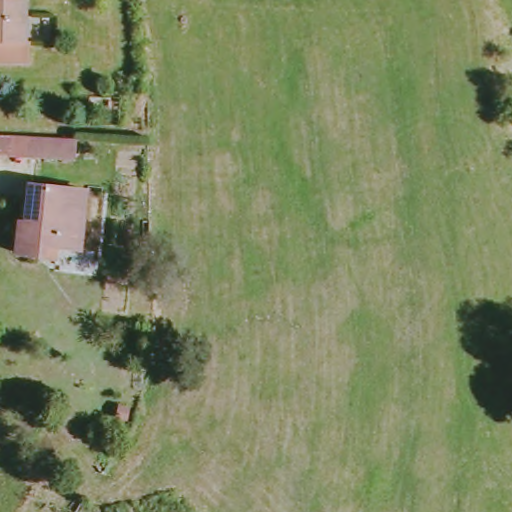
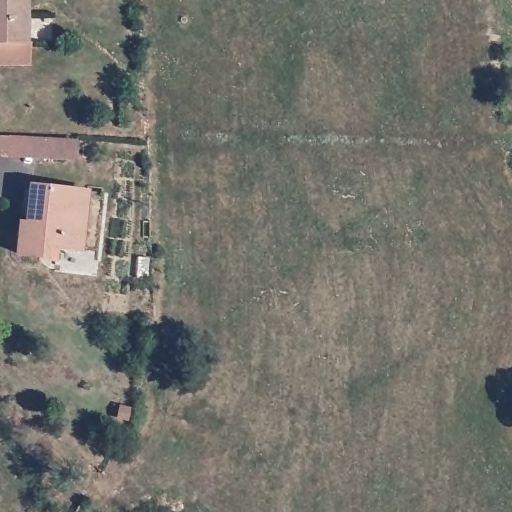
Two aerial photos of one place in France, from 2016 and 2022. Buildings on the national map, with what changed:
unchanged [(0,58),(0,0),(25,0),(23,59),(0,58)]
unchanged [(6,157),(6,134),(75,139),(76,160),(6,157)]
unchanged [(85,251),(49,247),(48,258),(12,255),(15,218),(23,219),(27,182),(92,190),(85,251)]

